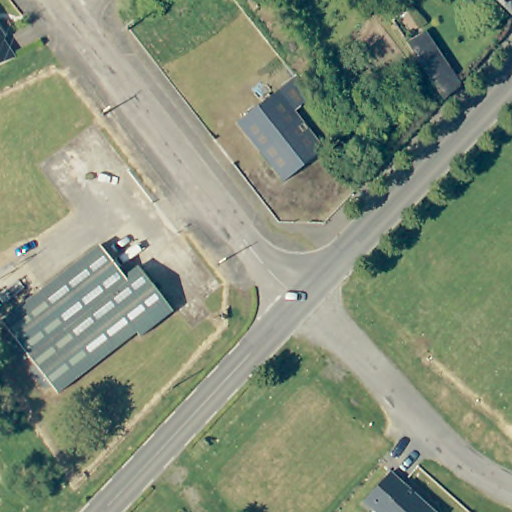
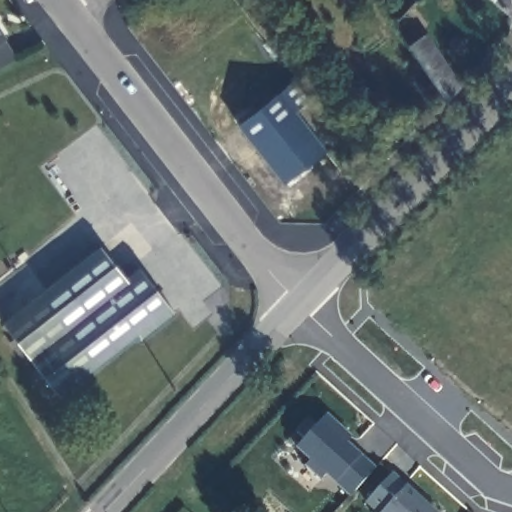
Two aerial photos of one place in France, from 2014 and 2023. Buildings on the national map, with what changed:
unchanged [(512,0),(512,14),(497,0),(512,0)]
unchanged [(5,37),(3,39),(16,57),(0,65),(0,29),(5,37)]
unchanged [(426,34),(460,86),(445,101),(443,98),(441,95),(409,45),(426,34)]
unchanged [(297,72),(314,94),(296,107),(325,145),(284,177),(238,119),(280,86),(297,72)]
unchanged [(101,246),(125,276),(139,266),(173,311),(140,336),(136,331),(57,393),(2,322),(101,246)]
new [(346,442),(375,467),(350,497),(324,473),(318,480),(302,464),(307,458),(295,447),(302,439),(294,432),(305,417),(315,426),(325,412),(350,436),(346,442)]
unchanged [(437,512),(379,512),(366,499),(391,471),(437,512)]

